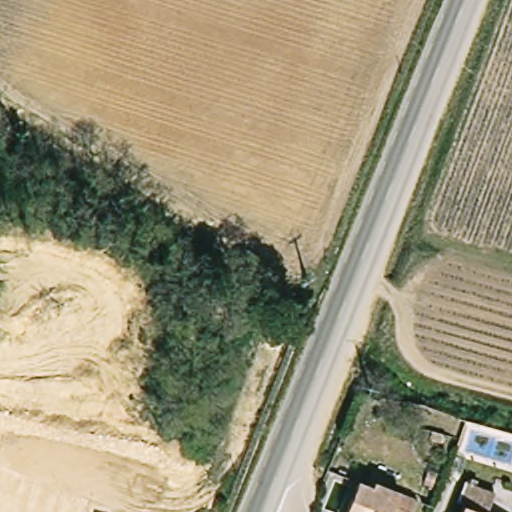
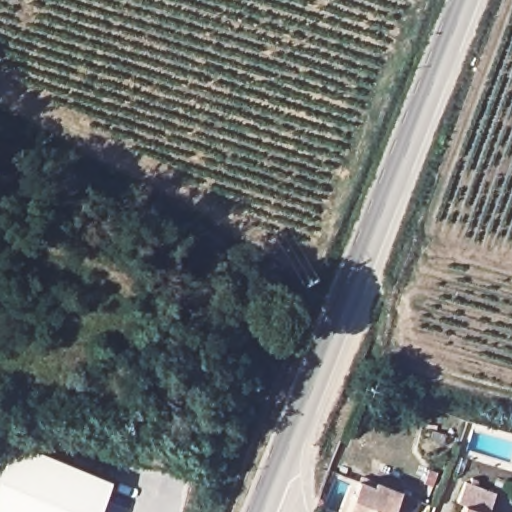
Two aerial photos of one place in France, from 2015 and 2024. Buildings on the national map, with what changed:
new [(108,482),(96,512),(0,512),(0,471),(11,442),(108,482)]
unchanged [(460,498),(468,477),(498,489),(489,510),(496,512),(463,512),(467,501),(460,498)]
unchanged [(379,490),(381,485),(418,500),(413,512),(351,512),(363,483),(379,490)]

